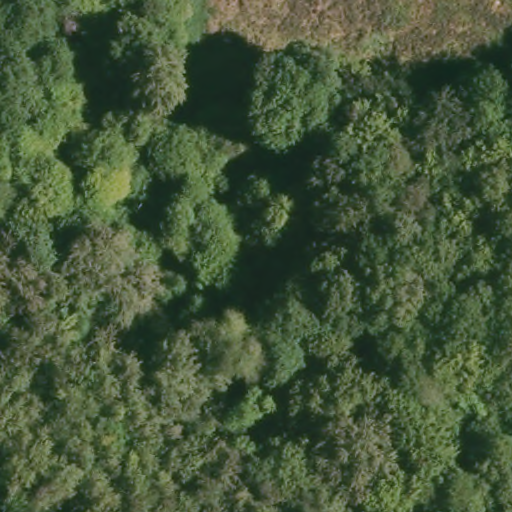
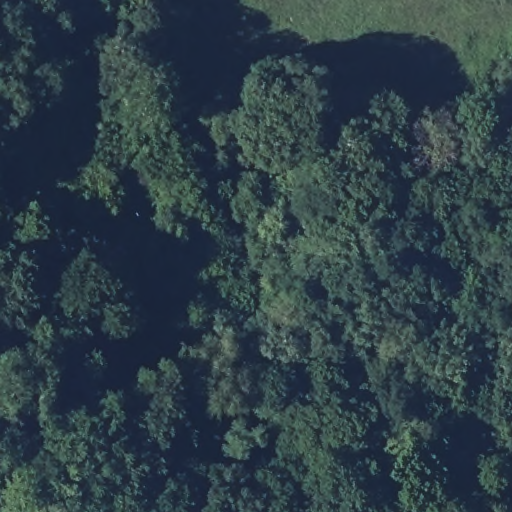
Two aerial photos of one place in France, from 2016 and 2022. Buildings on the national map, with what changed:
unchanged [(110,283),(112,269),(122,268),(120,284),(110,283)]

